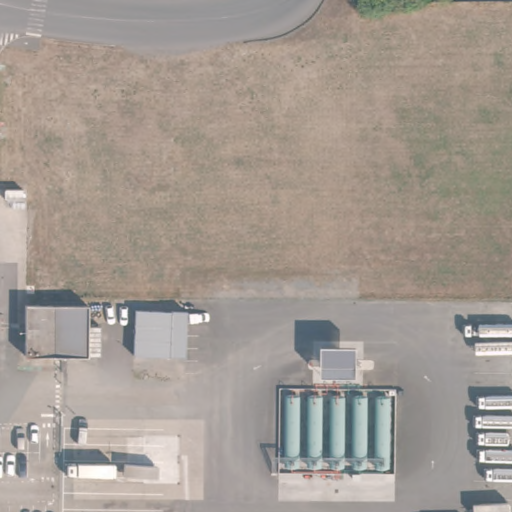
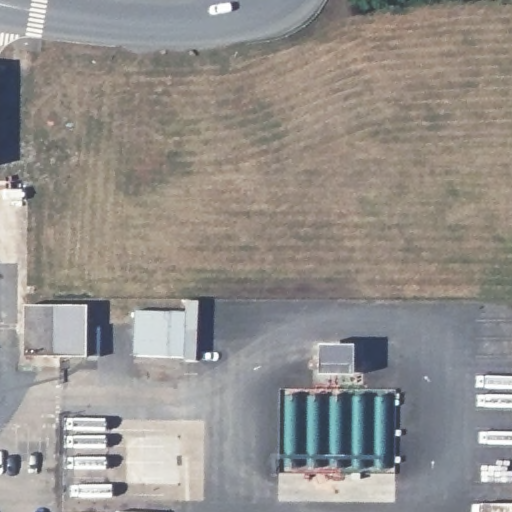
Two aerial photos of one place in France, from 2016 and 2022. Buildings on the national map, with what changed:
unchanged [(1,68),(0,111),(0,68),(1,68)]
unchanged [(77,307),(77,357),(41,356),(40,307),(77,307)]
unchanged [(183,313),(183,358),(134,357),(133,311),(183,313)]
unchanged [(356,343),(356,376),(317,376),(318,344),(356,343)]

